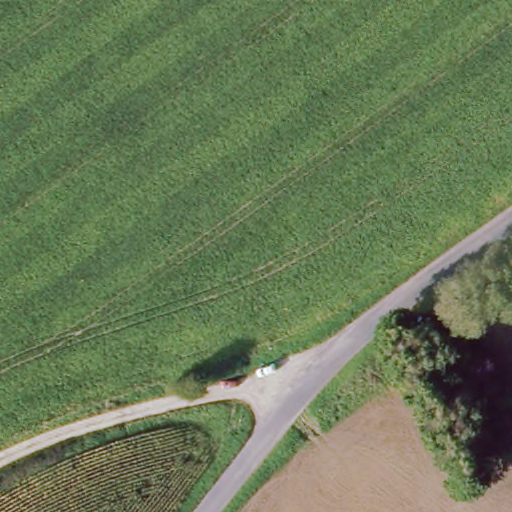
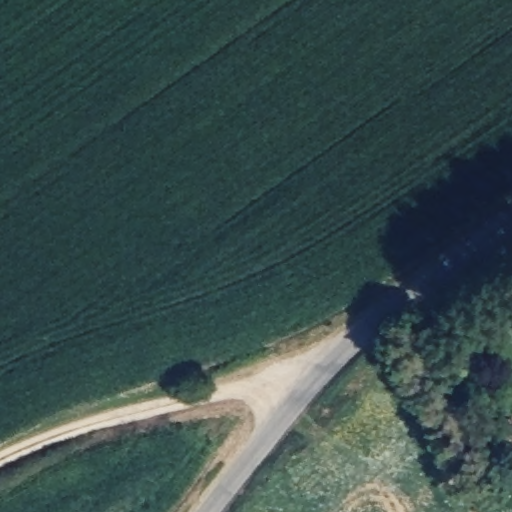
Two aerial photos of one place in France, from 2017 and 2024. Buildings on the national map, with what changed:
unchanged [(512,424),(512,448),(491,460),(480,439),(512,424)]

